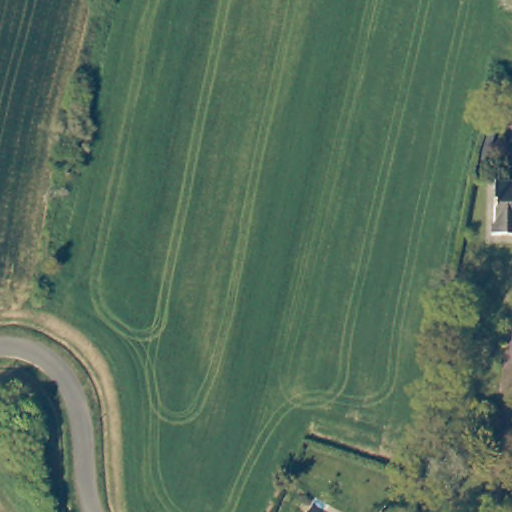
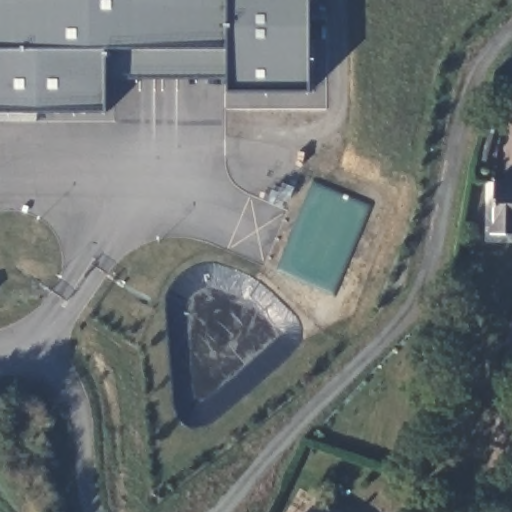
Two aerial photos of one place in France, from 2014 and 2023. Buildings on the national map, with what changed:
new [(227,93),(228,78),(105,79),(105,113),(0,113),(0,0),(310,0),(309,92),(227,93)]
unchanged [(494,237),(494,190),(512,190),(512,237),(494,237)]

